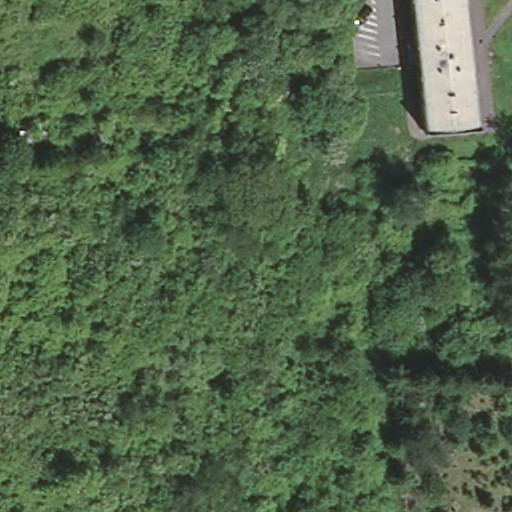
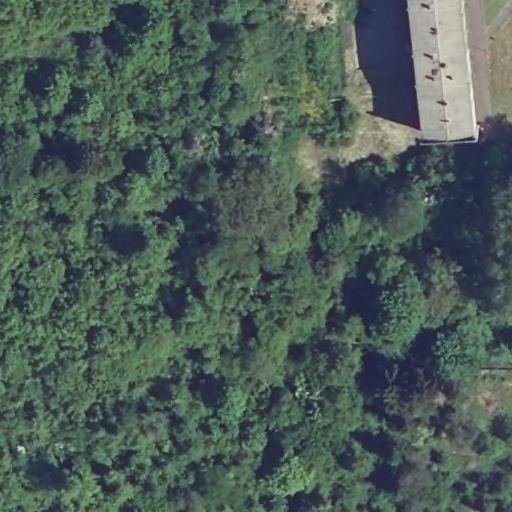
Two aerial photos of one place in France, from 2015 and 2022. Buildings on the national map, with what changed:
unchanged [(422,136),(407,0),(459,0),(473,131),(422,136)]

